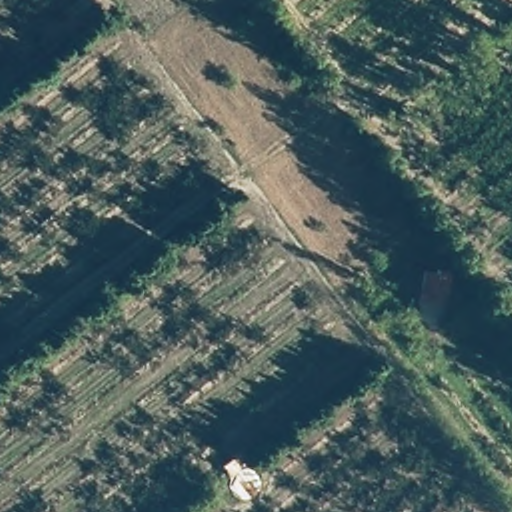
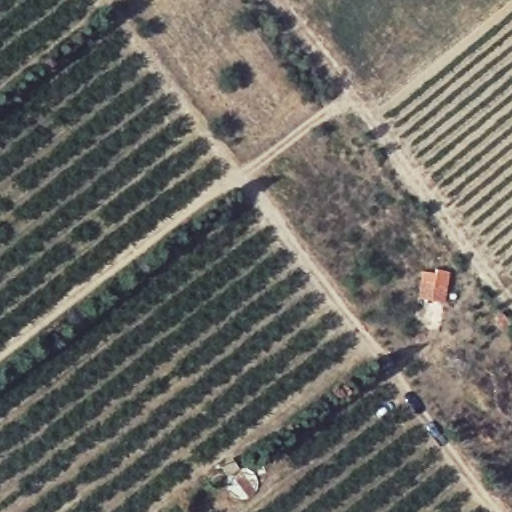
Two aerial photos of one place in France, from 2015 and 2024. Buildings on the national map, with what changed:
unchanged [(445,286),(442,303),(413,300),(416,282),(445,286)]

